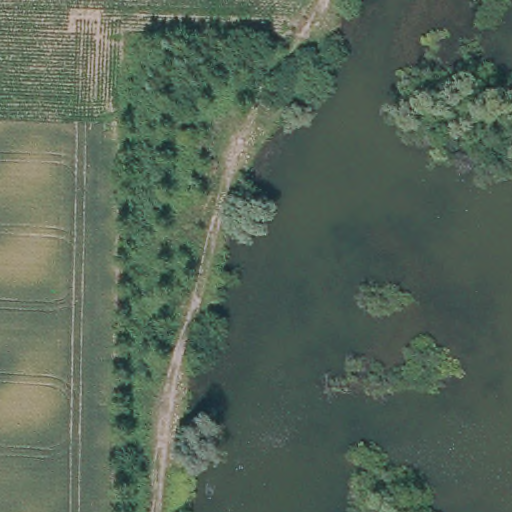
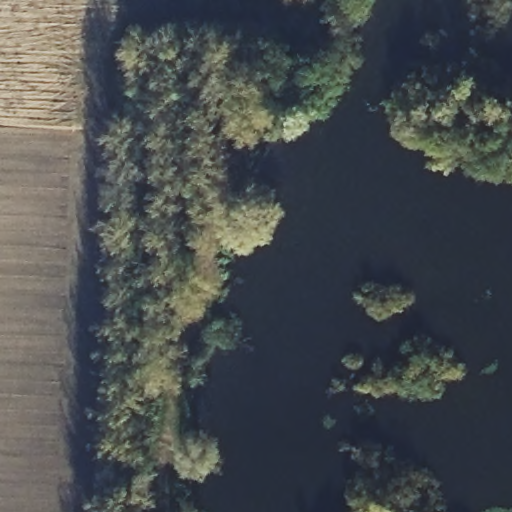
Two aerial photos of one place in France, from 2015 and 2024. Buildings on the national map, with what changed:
[]

